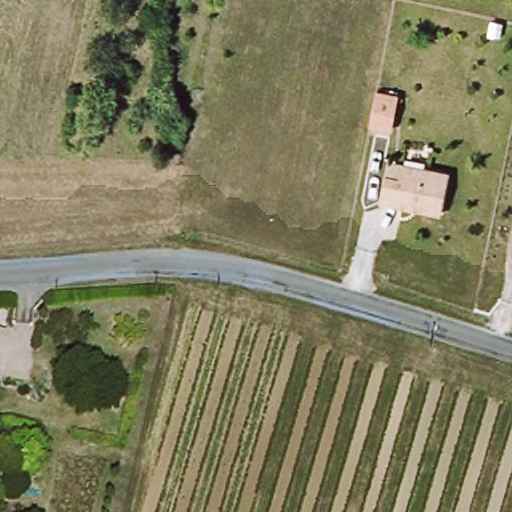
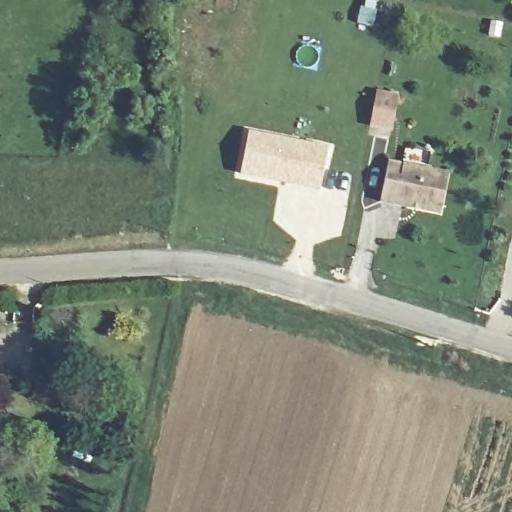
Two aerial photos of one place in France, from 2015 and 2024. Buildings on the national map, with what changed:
new [(375,89),(398,94),(391,131),(368,127),(375,89)]
new [(247,129),(328,146),(319,191),(237,174),(247,129)]
unchanged [(440,217),(382,205),(387,177),(389,164),(405,167),(449,177),(440,217)]
unchanged [(18,437),(0,437),(0,420),(17,420),(18,437)]

